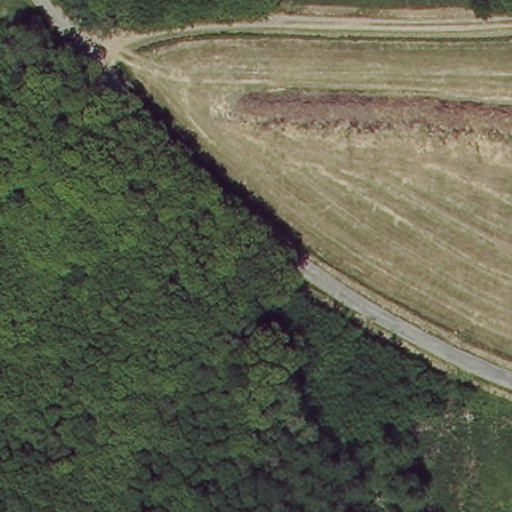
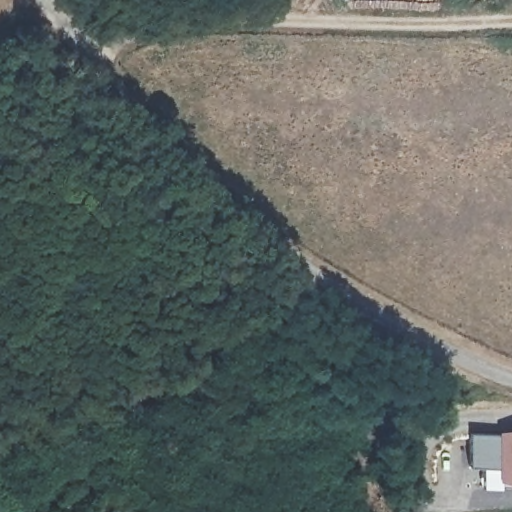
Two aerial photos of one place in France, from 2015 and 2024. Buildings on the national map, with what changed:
new [(481,488),(479,467),(469,466),(471,435),(499,435),(499,432),(512,430),(512,488),(481,488)]

